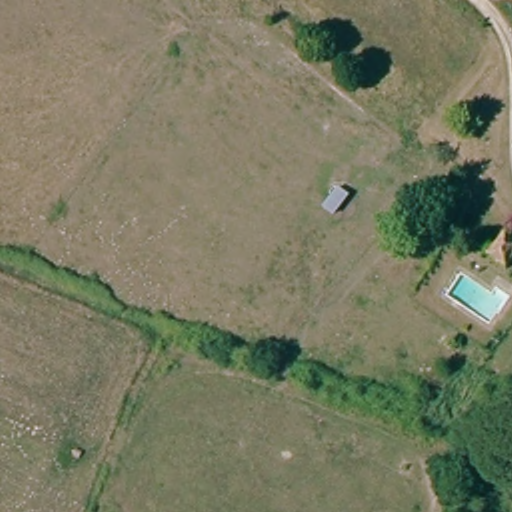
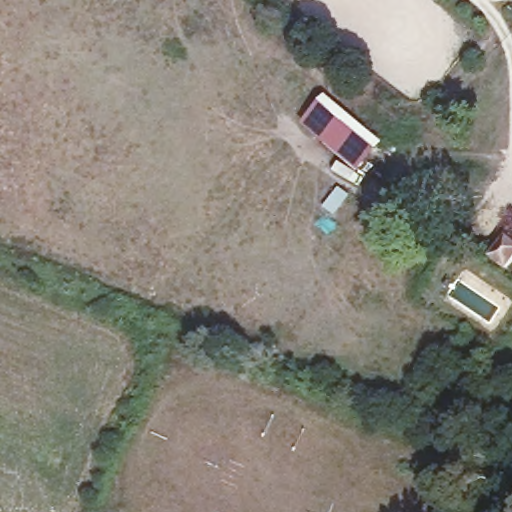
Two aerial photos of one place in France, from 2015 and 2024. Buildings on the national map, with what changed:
new [(306,127),(316,115),(312,111),(324,96),(382,144),(359,172),(306,127)]
unchanged [(511,237),(512,238),(512,266),(510,267),(496,256),(511,237)]

